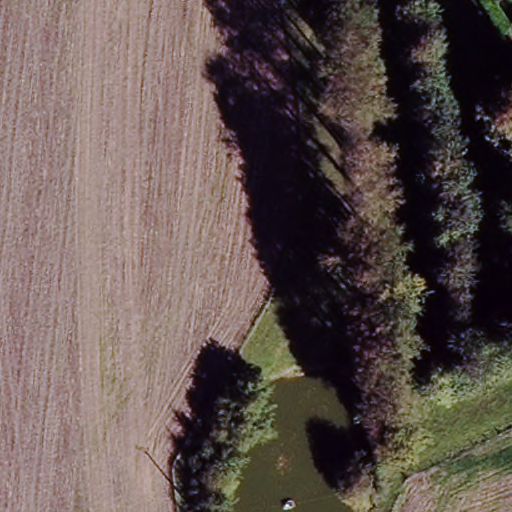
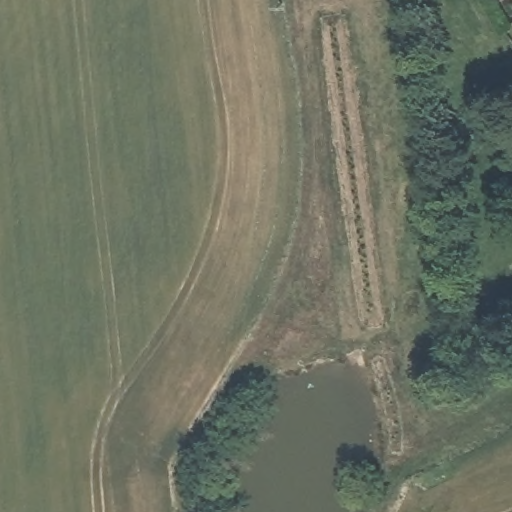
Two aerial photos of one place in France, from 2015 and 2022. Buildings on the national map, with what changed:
[]

